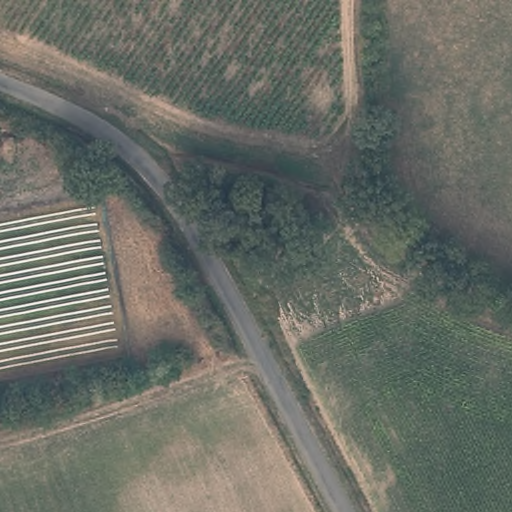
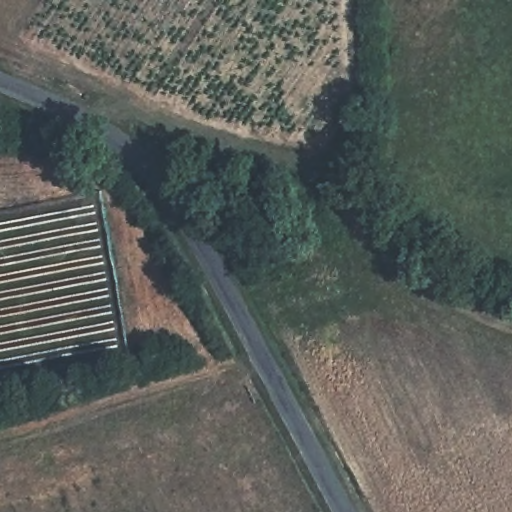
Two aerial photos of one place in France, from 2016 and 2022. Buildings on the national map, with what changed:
unchanged [(90,209),(117,356),(0,378),(0,227),(90,209)]

